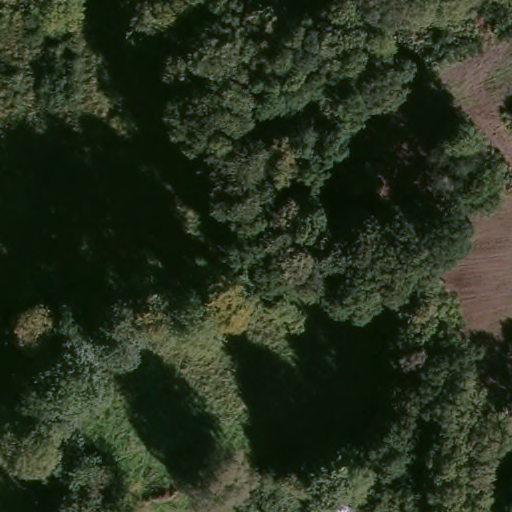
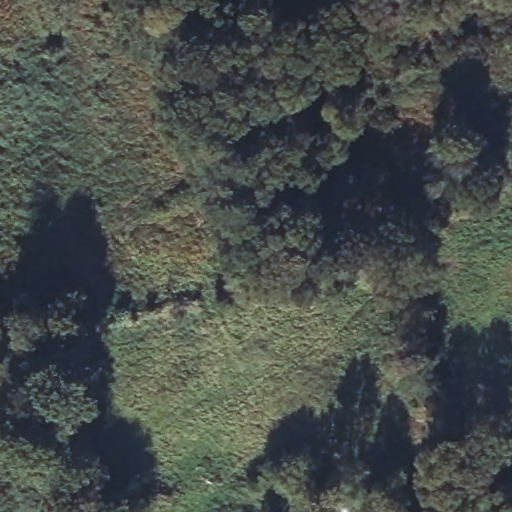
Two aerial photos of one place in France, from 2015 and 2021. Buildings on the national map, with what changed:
unchanged [(376,511),(372,512),(325,512),(321,494),(369,482),(376,511)]

